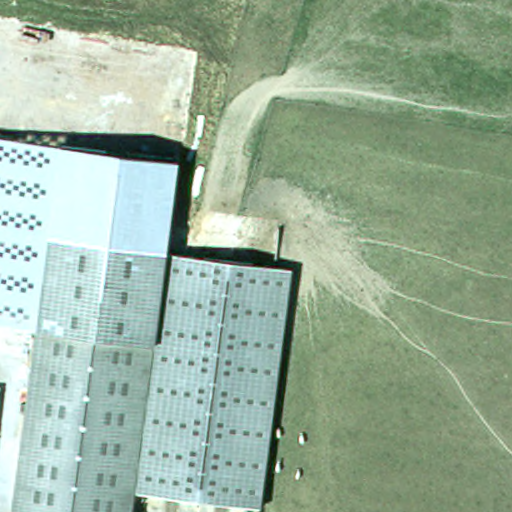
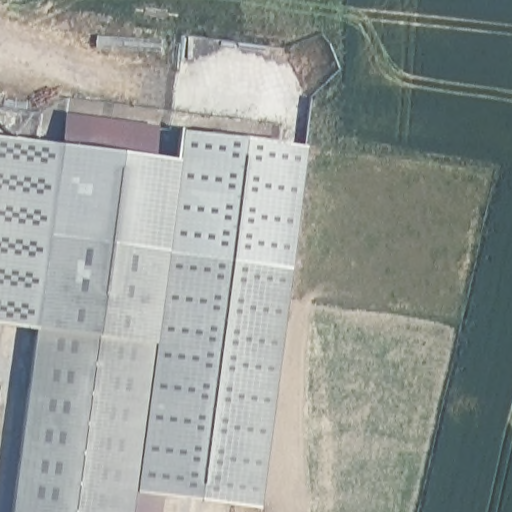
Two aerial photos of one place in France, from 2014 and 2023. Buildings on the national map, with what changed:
new [(169,246),(135,492),(133,493),(165,253),(175,163),(179,132),(305,146),(290,264),(169,246)]
unchanged [(0,143),(175,163),(165,253),(48,237),(36,328),(0,325),(0,143)]
unchanged [(48,237),(165,253),(130,512),(12,512),(48,237)]
unchanged [(169,246),(290,264),(258,511),(135,492),(169,246)]

